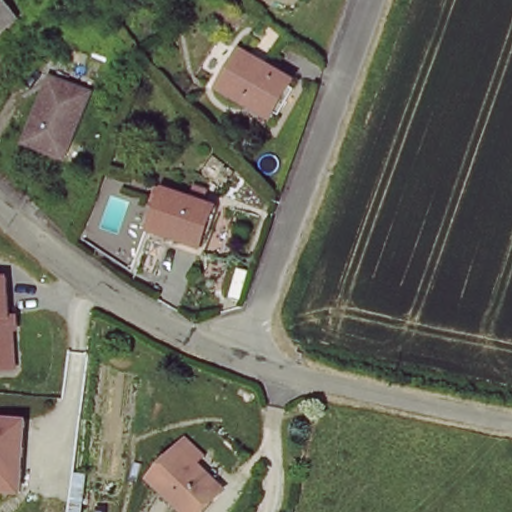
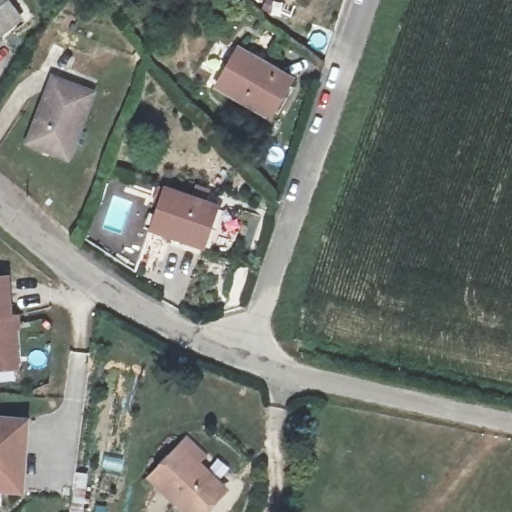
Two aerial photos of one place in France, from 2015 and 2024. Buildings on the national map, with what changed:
unchanged [(0,1),(16,21),(0,34),(0,1)]
unchanged [(273,112),(219,87),(235,51),(289,75),(273,112)]
unchanged [(95,99),(70,162),(33,145),(58,84),(95,99)]
unchanged [(198,254),(152,234),(162,207),(153,204),(160,189),(216,211),(198,254)]
unchanged [(11,315),(16,314),(21,370),(0,371),(0,276),(8,276),(11,315)]
unchanged [(25,495),(0,494),(0,417),(33,419),(25,495)]
unchanged [(181,512),(149,480),(177,450),(184,441),(201,458),(196,467),(221,492),(204,512),(181,512)]

